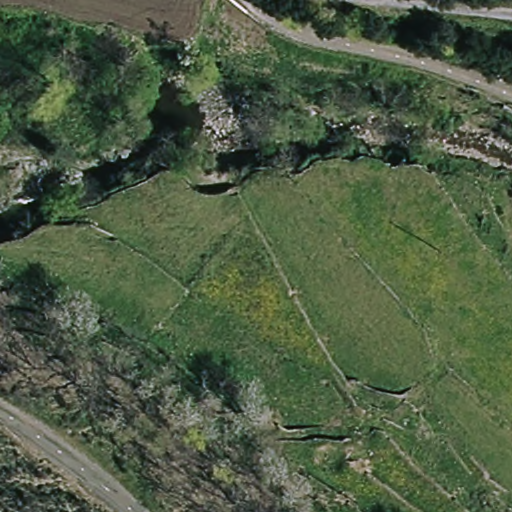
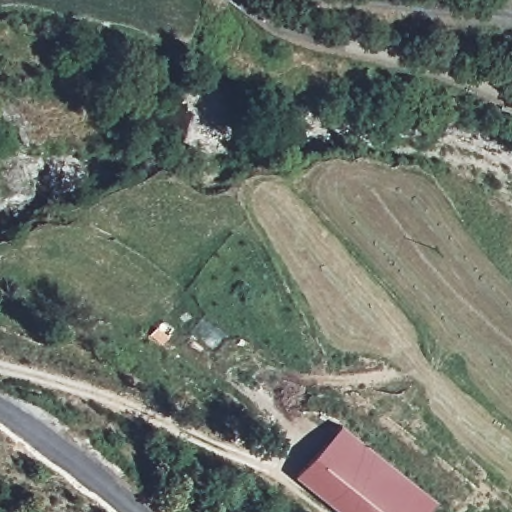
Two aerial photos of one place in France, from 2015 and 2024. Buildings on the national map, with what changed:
new [(340,424),(435,501),(426,512),(337,512),(296,479),(340,424)]

